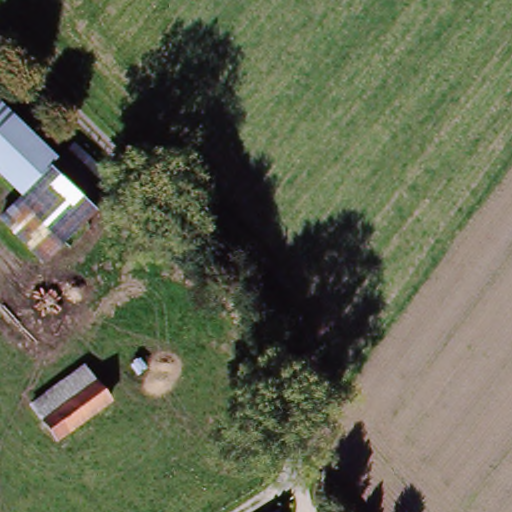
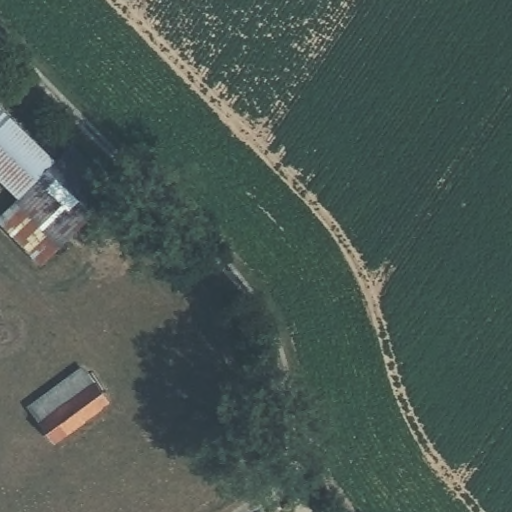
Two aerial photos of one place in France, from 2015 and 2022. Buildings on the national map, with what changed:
unchanged [(0,181),(0,107),(57,163),(38,182),(20,201),(0,181)]
unchanged [(72,148),(115,191),(100,206),(57,163),(72,148)]
unchanged [(57,163),(100,206),(81,225),(38,182),(57,163)]
unchanged [(81,225),(41,264),(0,223),(0,220),(20,201),(38,182),(81,225)]
unchanged [(27,402),(80,366),(91,382),(37,418),(27,402)]
unchanged [(37,418),(91,382),(104,400),(52,437),(37,418)]

